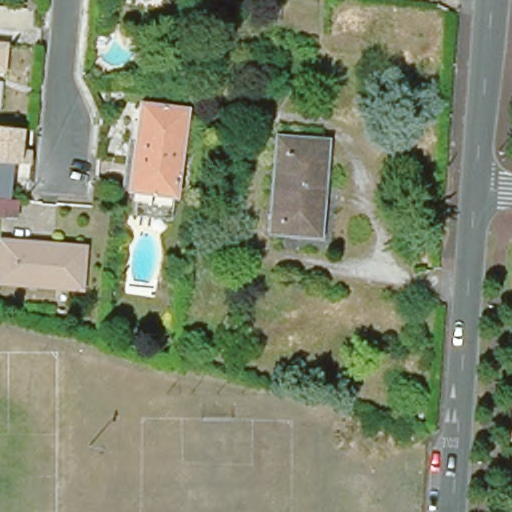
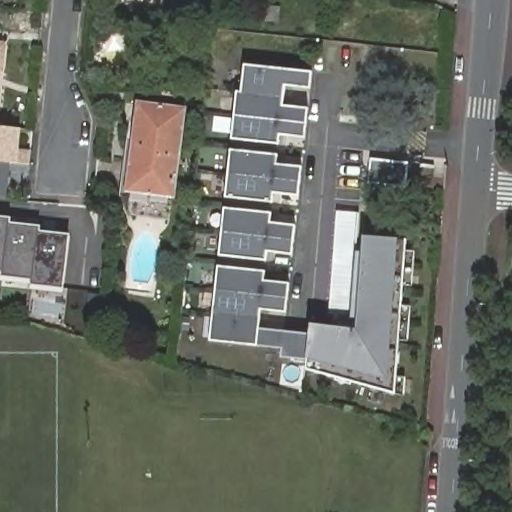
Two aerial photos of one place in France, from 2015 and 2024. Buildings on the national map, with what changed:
unchanged [(224,11),(222,23),(216,21),(218,10),(224,11)]
unchanged [(0,70),(0,45),(2,46),(0,70)]
unchanged [(224,48),(224,66),(216,66),(216,47),(224,48)]
new [(237,91),(242,91),(245,64),(313,71),(312,87),(287,85),(284,105),(310,108),(306,136),(281,134),(280,144),(232,138),(237,91)]
unchanged [(181,109),(171,195),(129,190),(139,105),(181,109)]
unchanged [(31,149),(30,165),(12,163),(9,197),(0,196),(0,126),(22,129),(22,146),(31,149)]
demolished [(317,139),(316,152),(322,153),(316,238),(266,232),(274,136),(317,139)]
new [(278,154),(278,164),(303,166),(300,196),(275,194),(273,203),(226,197),(231,149),(278,154)]
new [(407,187),(369,183),(372,158),(410,163),(407,187)]
demolished [(14,219),(0,217),(0,197),(16,198),(14,219)]
new [(272,213),(272,222),(297,225),(293,255),(267,252),(267,261),(220,256),(225,208),(272,213)]
new [(2,276),(0,275),(0,216),(12,217),(12,222),(42,226),(41,231),(71,234),(65,288),(64,293),(31,290),(32,284),(2,281),(2,276)]
new [(307,369),(307,358),(310,334),(311,323),(356,328),(363,236),(398,238),(407,238),(396,394),(307,369)]
demolished [(82,288),(2,281),(3,272),(0,272),(0,252),(3,252),(4,244),(85,249),(82,288)]
new [(266,271),(265,282),(291,284),(287,313),(262,310),(261,329),(258,346),(211,340),(219,266),(266,271)]
new [(282,356),(282,348),(258,346),(261,329),(310,334),(307,358),(282,356)]

